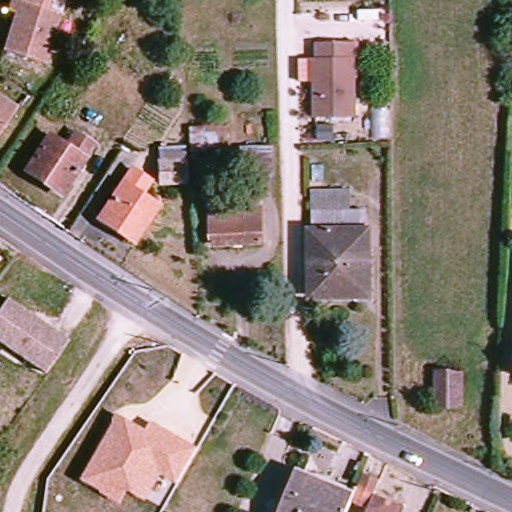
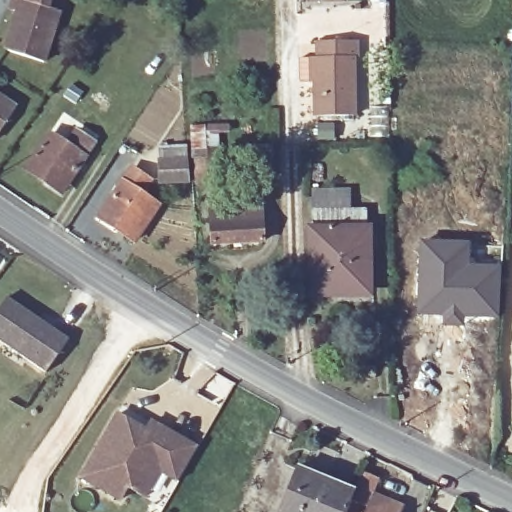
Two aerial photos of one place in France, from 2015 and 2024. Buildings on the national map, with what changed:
unchanged [(16,14),(7,11),(10,0),(52,0),(50,9),(62,14),(46,64),(3,50),(16,14)]
unchanged [(356,120),(317,121),(316,65),(319,65),(318,47),(354,46),(356,120)]
unchanged [(18,105),(0,132),(0,94),(18,105)]
unchanged [(196,183),(193,126),(206,126),(208,150),(219,150),(219,182),(196,183)]
unchanged [(25,172),(49,137),(65,150),(74,137),(90,148),(58,194),(25,172)]
unchanged [(163,178),(163,155),(189,155),(190,177),(163,178)]
unchanged [(100,217),(131,170),(149,183),(142,195),(158,205),(133,241),(100,217)]
unchanged [(259,245),(211,246),(210,209),(257,205),(259,245)]
unchanged [(360,237),(370,238),(371,300),(316,300),(314,215),(360,215),(360,237)]
new [(422,240),(466,243),(465,265),(502,267),(500,315),(463,314),(463,324),(445,323),(445,313),(419,312),(422,240)]
unchanged [(49,376),(0,341),(0,316),(12,300),(72,343),(49,376)]
demolished [(462,402),(437,402),(437,370),(463,370),(462,402)]
unchanged [(147,430),(152,420),(196,446),(176,483),(161,475),(147,501),(127,490),(121,503),(79,480),(117,412),(147,430)]
unchanged [(364,471),(379,477),(373,492),(404,504),(400,512),(365,512),(368,505),(353,500),(364,471)]
unchanged [(316,480),(315,485),(353,500),(348,512),(282,512),(298,472),(316,480)]

